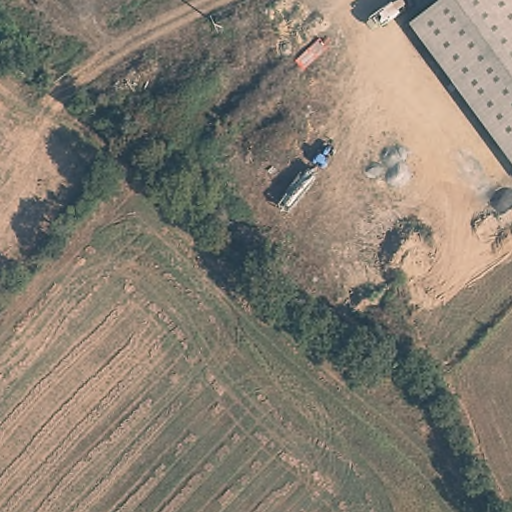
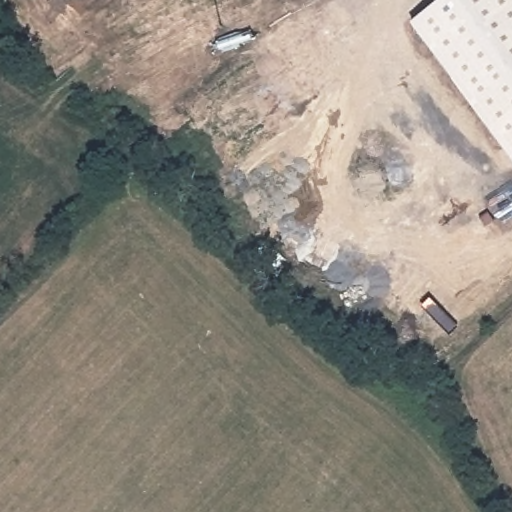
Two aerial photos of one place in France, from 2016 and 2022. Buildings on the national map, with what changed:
unchanged [(413,25),(447,0),(512,0),(512,158),(413,25)]

